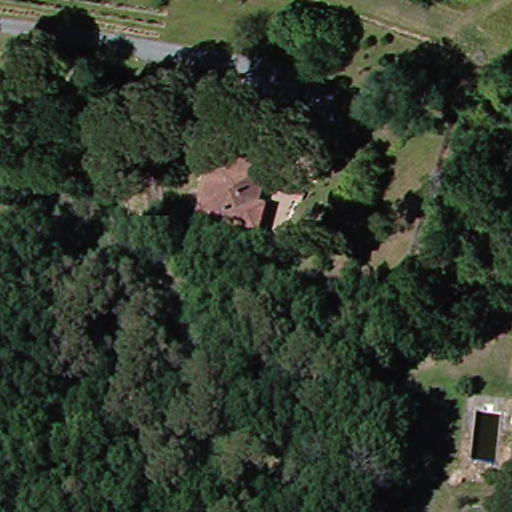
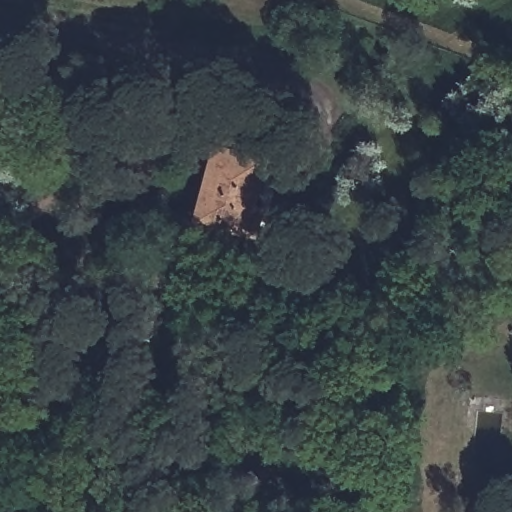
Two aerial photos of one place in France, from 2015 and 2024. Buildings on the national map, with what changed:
unchanged [(265,212),(257,239),(197,222),(204,202),(219,149),(221,137),(275,152),(282,156),(276,178),(268,176),(259,208),(265,212)]

